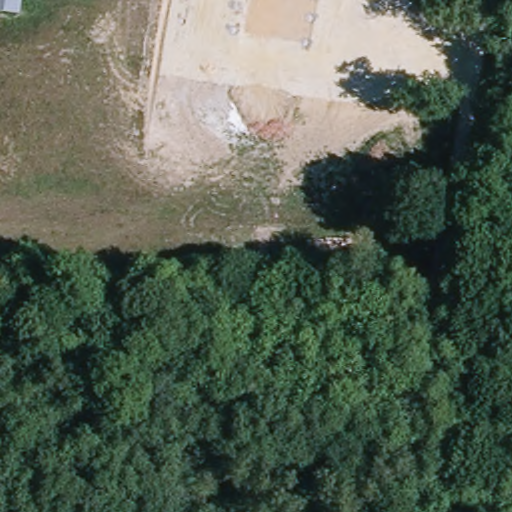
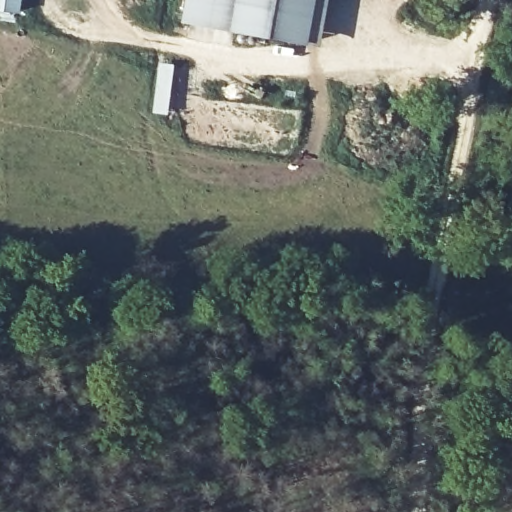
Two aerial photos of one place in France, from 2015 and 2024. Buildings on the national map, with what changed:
unchanged [(0,6),(0,0),(18,0),(17,9),(0,6)]
new [(181,24),(185,0),(329,0),(320,49),(181,24)]

